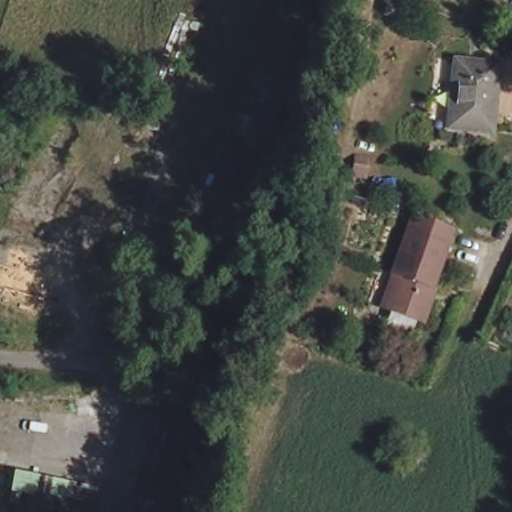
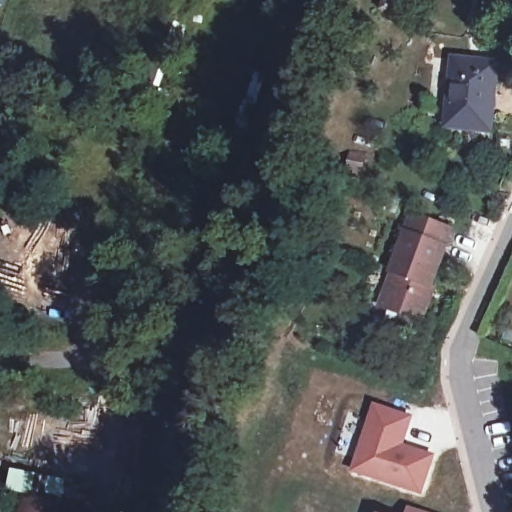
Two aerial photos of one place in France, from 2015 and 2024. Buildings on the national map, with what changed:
unchanged [(498,65),(489,134),(446,131),(454,62),(498,65)]
unchanged [(385,267),(407,215),(450,232),(414,322),(377,308),(369,305),(385,267)]
new [(409,418),(401,447),(432,457),(421,493),(354,472),(375,407),(409,418)]
unchanged [(8,512),(10,501),(60,512),(8,512)]

